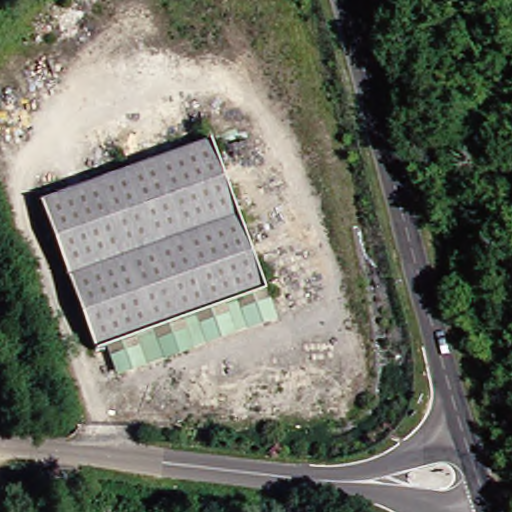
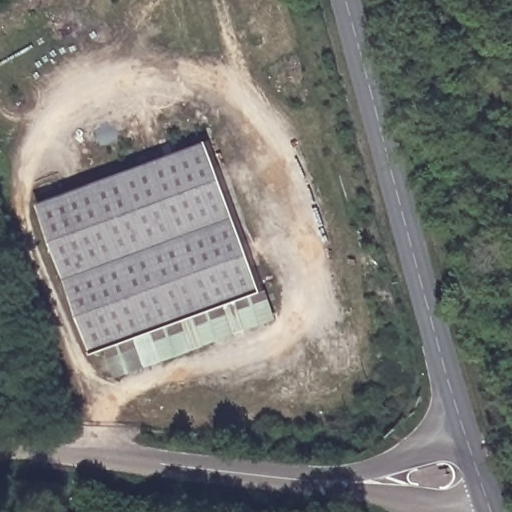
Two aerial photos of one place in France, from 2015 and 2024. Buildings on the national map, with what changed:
unchanged [(108,344),(95,348),(46,194),(219,140),(268,292),(108,344)]
unchanged [(276,319),(117,371),(108,344),(268,292),(276,319)]

